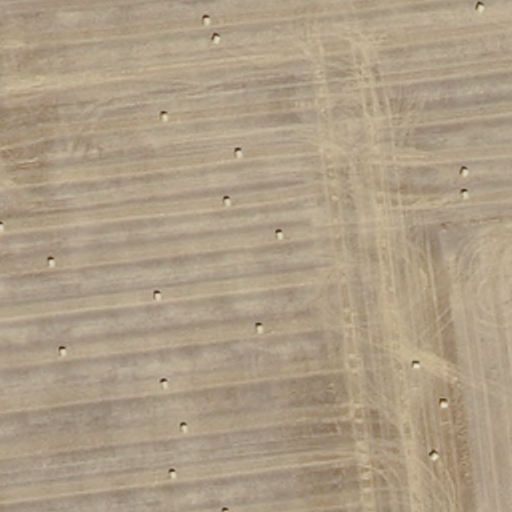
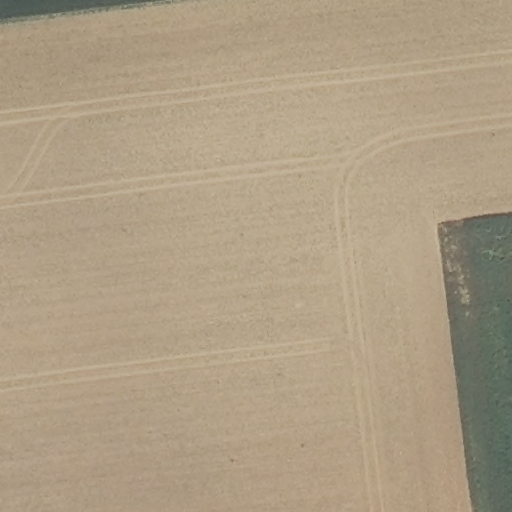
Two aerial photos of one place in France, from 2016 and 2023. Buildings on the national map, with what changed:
[]

